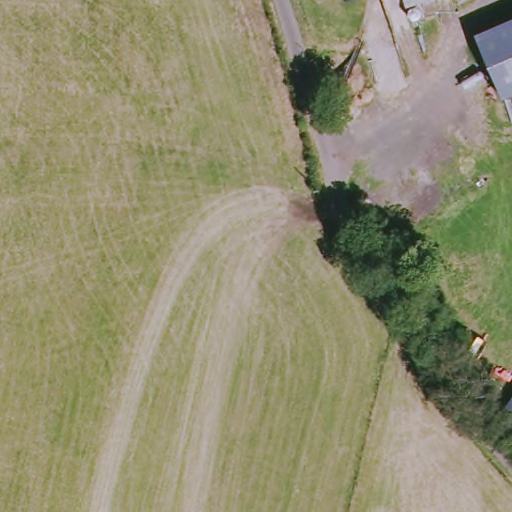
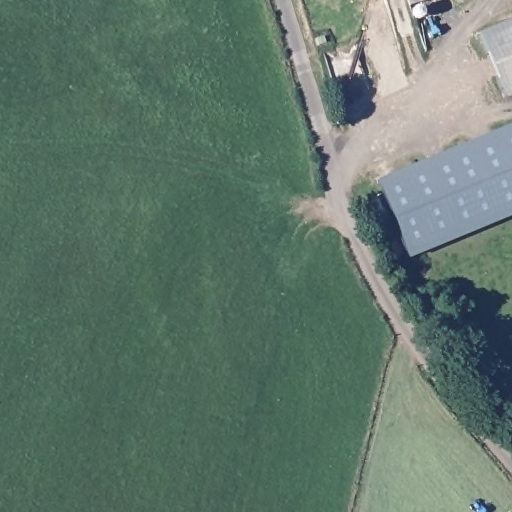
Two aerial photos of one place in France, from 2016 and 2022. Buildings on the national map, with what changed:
unchanged [(353,5),(352,0),(369,0),(353,5)]
unchanged [(417,8),(414,0),(443,0),(417,8)]
unchanged [(512,18),(512,96),(505,99),(480,34),(512,18)]
new [(407,259),(375,181),(512,126),(512,217),(407,259)]
unchanged [(508,411),(512,406),(512,414),(508,411)]

